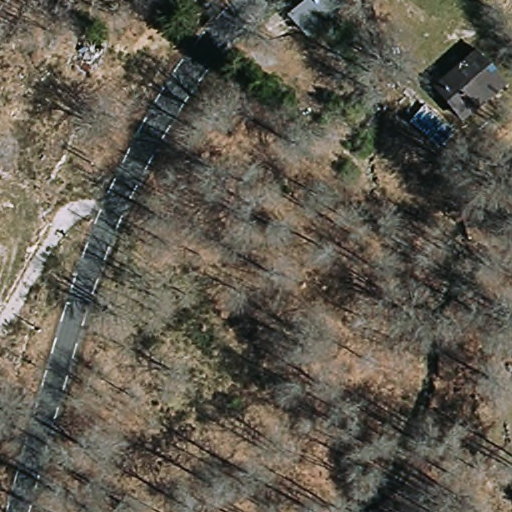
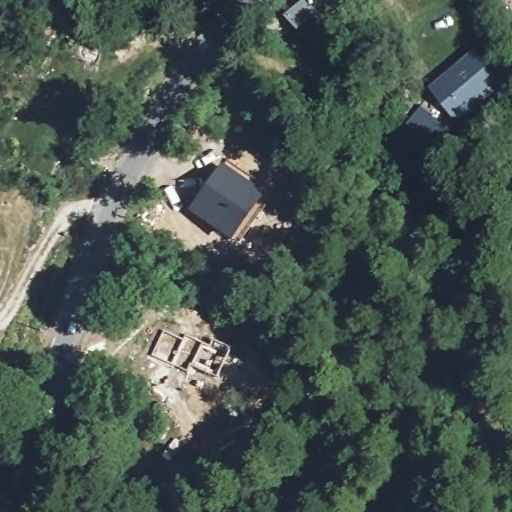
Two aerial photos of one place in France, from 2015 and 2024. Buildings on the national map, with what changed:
unchanged [(342,5),(306,37),(289,17),(309,0),(339,0),(342,5)]
unchanged [(108,40),(100,61),(72,50),(79,30),(108,40)]
unchanged [(438,88),(447,80),(481,50),(511,85),(477,115),(468,123),(438,88)]
new [(230,242),(187,211),(222,164),(265,195),(230,242)]

